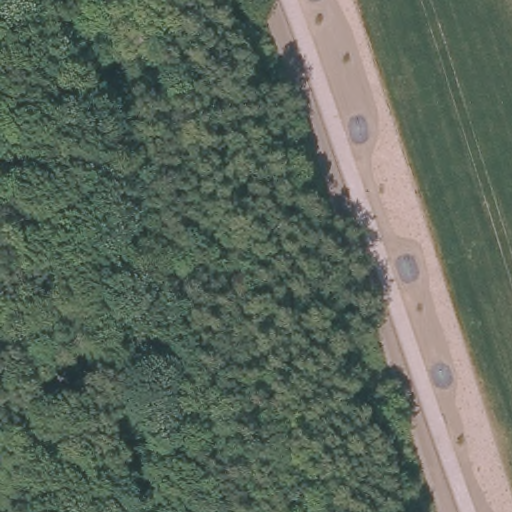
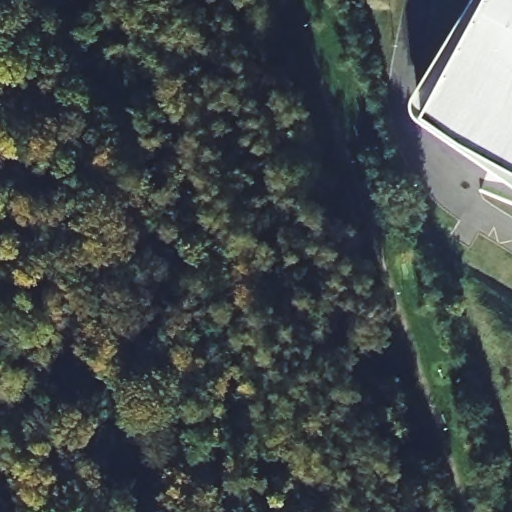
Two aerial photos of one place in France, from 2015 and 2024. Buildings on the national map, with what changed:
new [(484,0),(512,0),(512,179),(495,170),(419,119),(484,0)]

